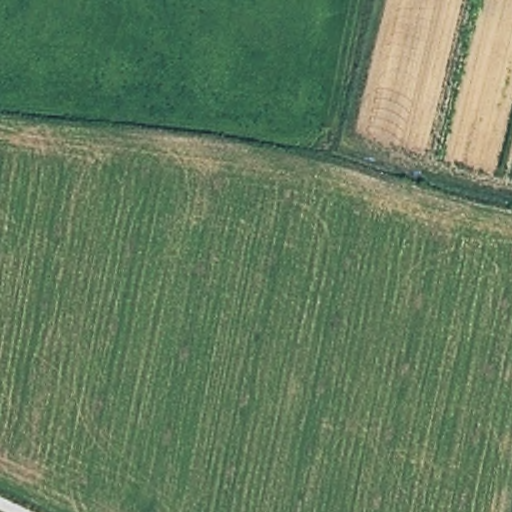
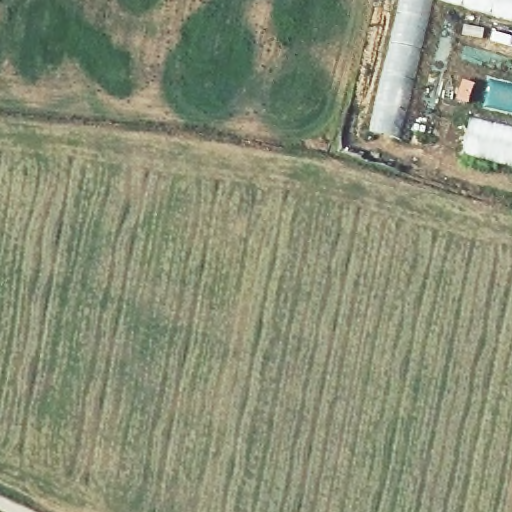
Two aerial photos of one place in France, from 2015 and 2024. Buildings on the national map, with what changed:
new [(369,131),(401,0),(433,0),(401,139),(369,131)]
new [(433,0),(512,0),(512,21),(433,0)]
new [(461,157),(470,119),(512,127),(512,168),(461,157)]

